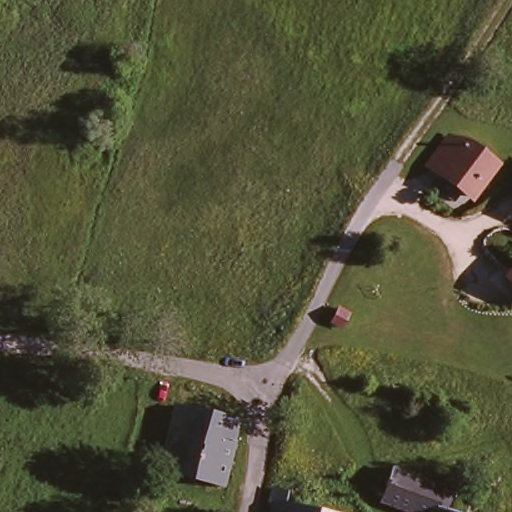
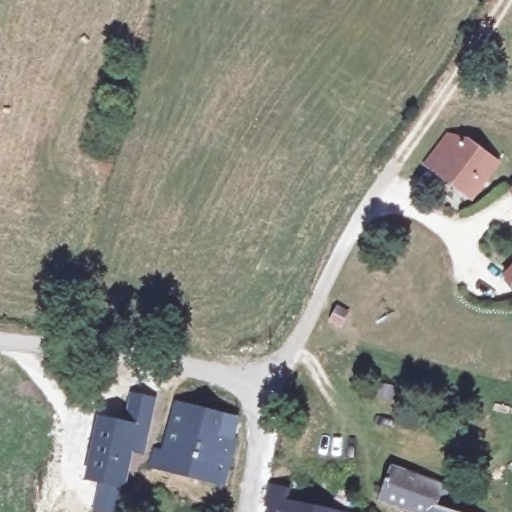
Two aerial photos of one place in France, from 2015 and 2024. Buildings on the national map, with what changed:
unchanged [(448,134),(465,139),(492,160),(470,192),(429,163),(448,134)]
unchanged [(512,186),(512,188),(511,187),(512,186)]
unchanged [(512,264),(512,286),(501,276),(512,264)]
unchanged [(349,312),(357,318),(350,329),(341,324),(349,312)]
new [(91,512),(97,483),(84,480),(95,413),(123,419),(130,390),(157,396),(145,456),(134,454),(127,490),(121,512),(91,512)]
unchanged [(170,463),(181,402),(239,414),(227,476),(170,463)]
unchanged [(439,483),(435,493),(475,506),(473,512),(426,512),(382,497),(390,468),(439,483)]
unchanged [(277,510),(282,494),(294,497),(292,504),(328,512),(279,512),(277,510)]

